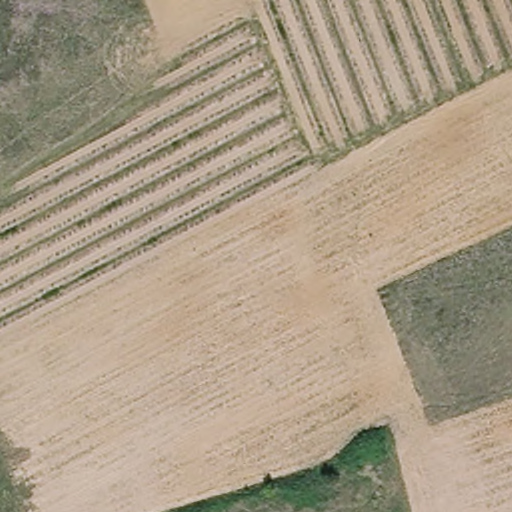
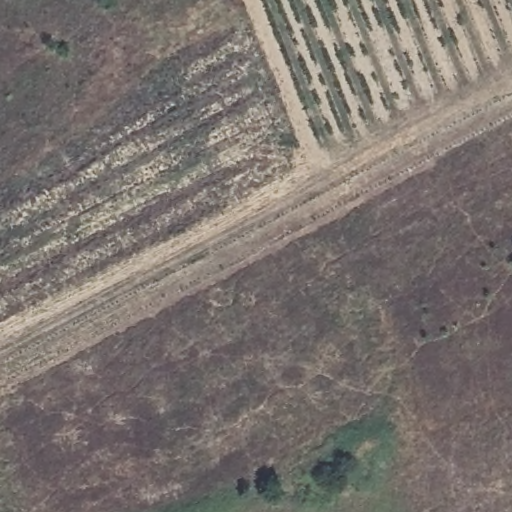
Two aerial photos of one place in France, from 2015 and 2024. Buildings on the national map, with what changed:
[]

